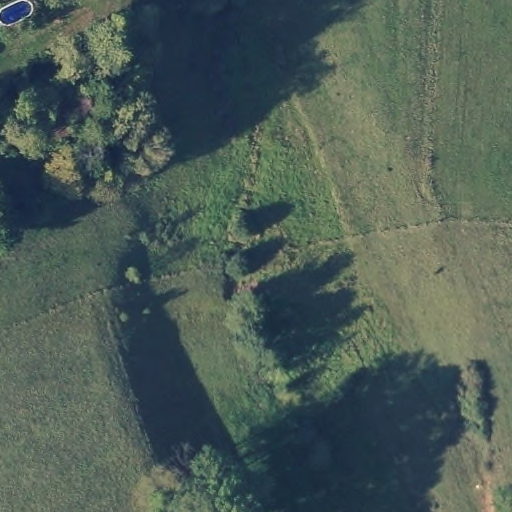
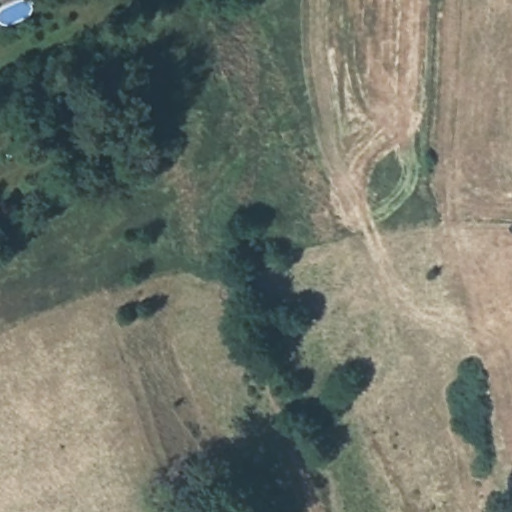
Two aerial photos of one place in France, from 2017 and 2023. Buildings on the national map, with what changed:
[]

